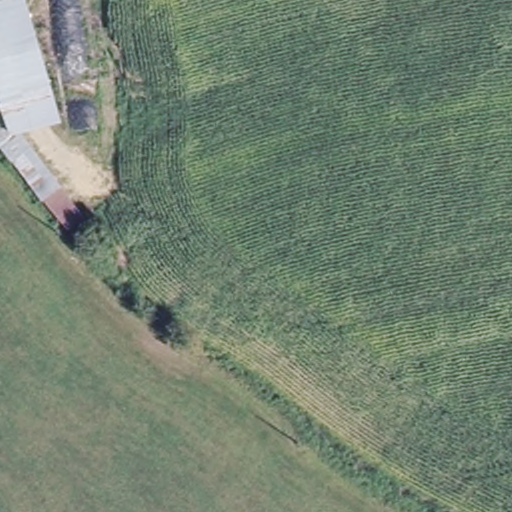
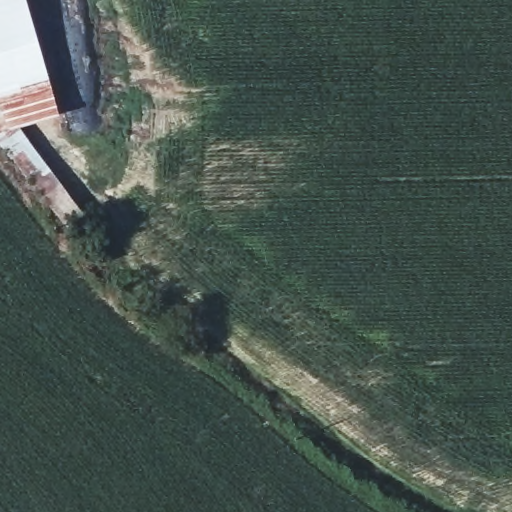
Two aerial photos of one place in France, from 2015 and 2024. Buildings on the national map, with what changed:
unchanged [(5,131),(0,112),(0,2),(10,0),(18,0),(51,119),(5,131)]

